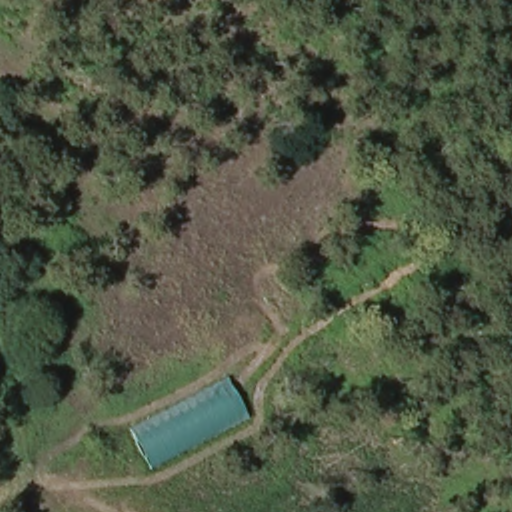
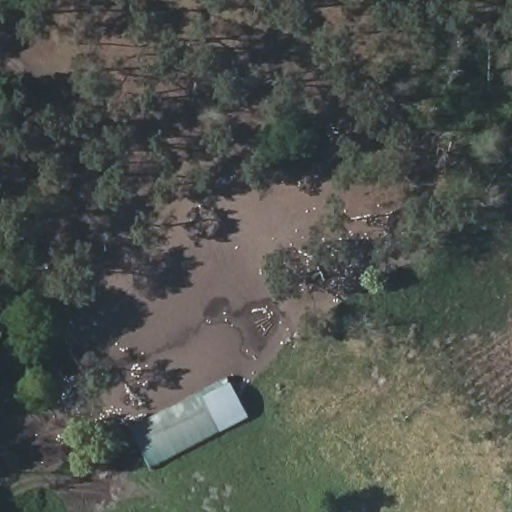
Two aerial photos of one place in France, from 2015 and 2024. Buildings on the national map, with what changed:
unchanged [(155,467),(133,429),(232,379),(251,419),(155,467)]

